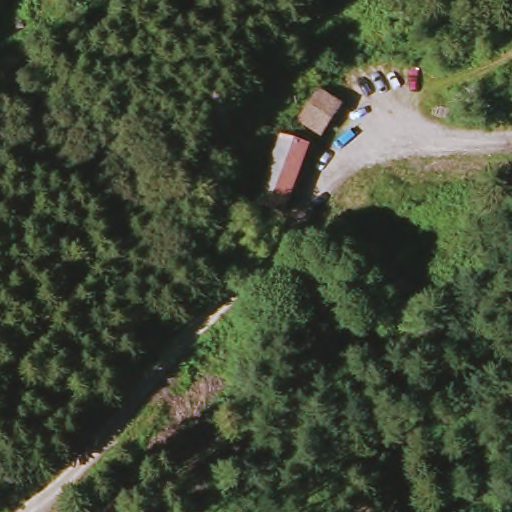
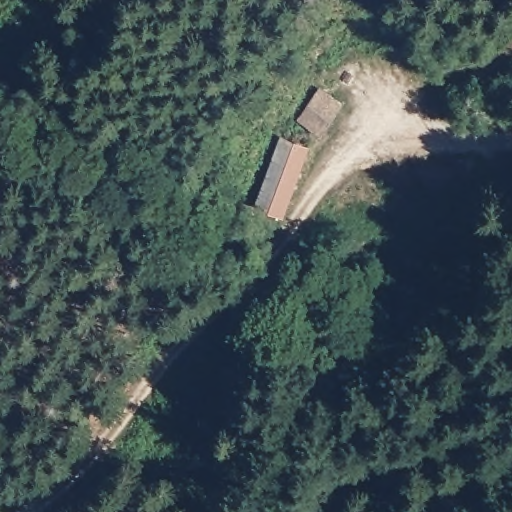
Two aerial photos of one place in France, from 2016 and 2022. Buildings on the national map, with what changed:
unchanged [(318,92),(339,107),(319,136),(300,122),(318,92)]
unchanged [(252,201),(275,141),(277,138),(300,153),(278,213),(252,201)]

